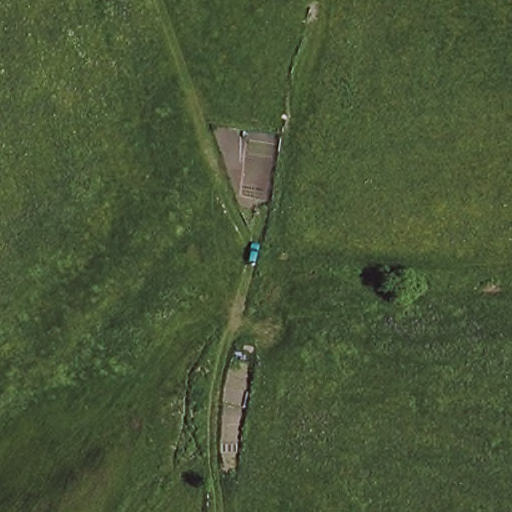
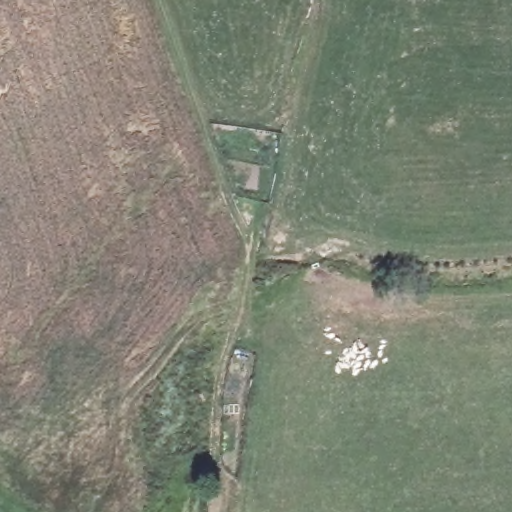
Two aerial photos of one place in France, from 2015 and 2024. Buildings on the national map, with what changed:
[]

